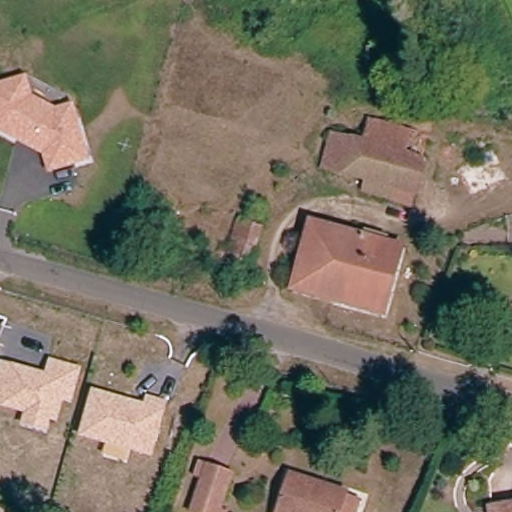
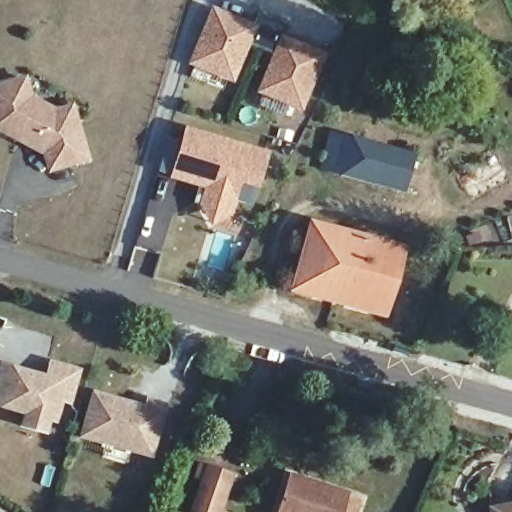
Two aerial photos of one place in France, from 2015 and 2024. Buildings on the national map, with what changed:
new [(214,10),(254,26),(259,14),(274,20),(262,49),(248,43),(233,79),(192,63),(214,10)]
new [(276,54),(262,49),(274,20),(288,26),(283,39),(323,55),(302,107),(261,91),(276,54)]
unchanged [(26,76),(33,96),(54,109),(74,104),(92,158),(48,172),(43,157),(0,132),(0,84),(26,76)]
unchanged [(431,142),(416,199),(411,198),(409,208),(364,196),(367,184),(323,172),(332,138),(364,147),(369,125),(431,142)]
new [(202,206),(194,203),(199,184),(173,177),(186,130),(266,154),(259,176),(256,186),(239,181),(229,214),(212,223),(202,206)]
unchanged [(311,228),(401,252),(383,319),(293,294),(311,228)]
unchanged [(81,365),(73,403),(64,401),(58,425),(50,423),(48,432),(22,426),(24,414),(0,407),(0,361),(45,372),(48,359),(81,365)]
unchanged [(146,395),(167,401),(153,458),(131,452),(128,460),(103,454),(106,445),(78,437),(91,388),(144,403),(146,395)]
unchanged [(212,512),(184,512),(198,471),(222,480),(212,512)]
unchanged [(360,512),(275,512),(285,478),(362,501),(360,512)]
unchanged [(512,512),(486,512),(512,508),(512,512)]

